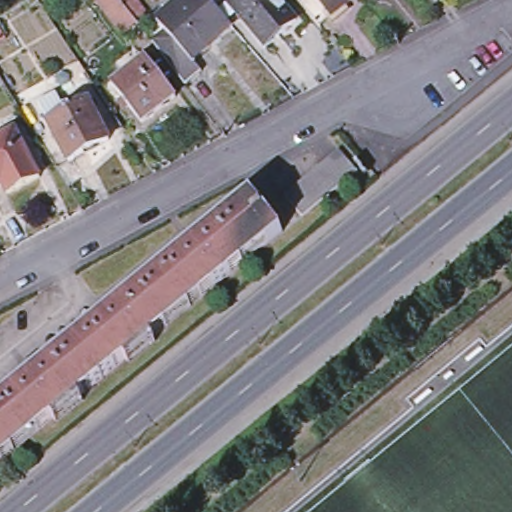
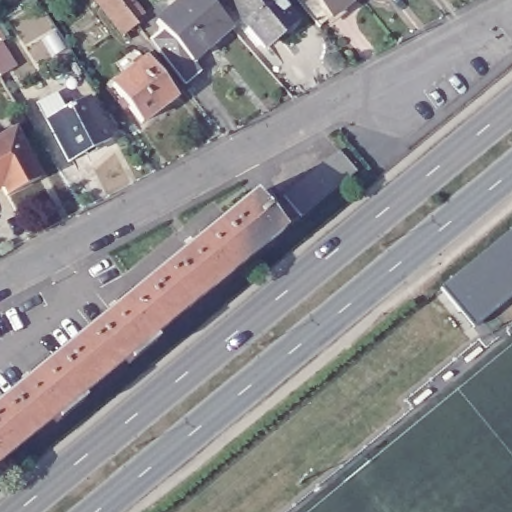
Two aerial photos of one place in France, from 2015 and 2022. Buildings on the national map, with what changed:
unchanged [(114,0),(128,0),(140,14),(130,22),(132,25),(119,35),(92,0),(114,0)]
unchanged [(156,28),(172,14),(189,0),(202,0),(215,15),(225,6),(233,0),(273,0),(295,27),(264,52),(240,24),(230,33),(192,67),(201,77),(185,91),(150,46),(163,36),(156,28)]
unchanged [(327,13),(315,22),(297,0),(353,0),(330,19),(327,13)]
unchanged [(141,123),(112,86),(145,60),(175,97),(141,123)]
unchanged [(52,126),(42,109),(59,100),(68,117),(91,106),(112,146),(74,167),(52,126)]
unchanged [(0,139),(15,131),(39,179),(7,195),(2,186),(0,187),(0,139)]
unchanged [(305,179),(316,170),(327,161),(339,152),(355,174),(345,182),(334,191),(323,200),(312,209),(300,218),(283,197),(295,187),(305,179)]
unchanged [(253,196),(282,232),(67,407),(47,365),(253,196)]
new [(512,230),(512,296),(475,326),(443,288),(512,230)]
unchanged [(0,404),(47,365),(67,407),(0,463),(0,404)]

